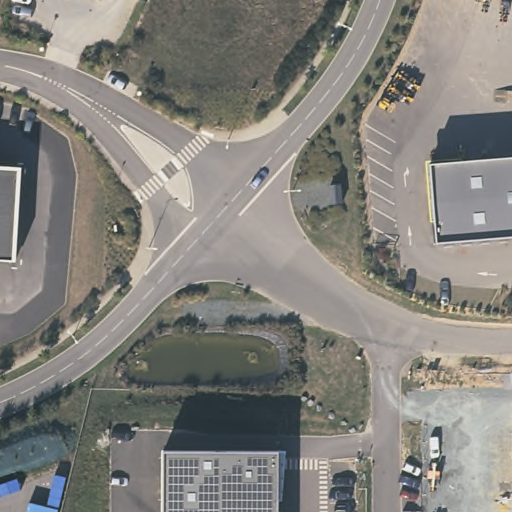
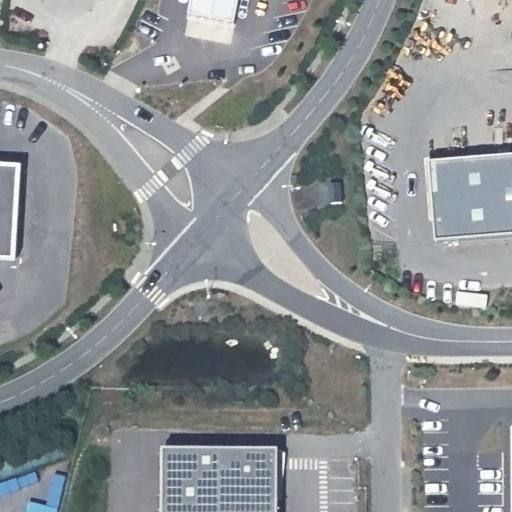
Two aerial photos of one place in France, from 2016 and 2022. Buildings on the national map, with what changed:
new [(190,15),(192,0),(237,0),(234,22),(190,15)]
unchanged [(512,158),(512,237),(435,242),(428,164),(512,158)]
unchanged [(15,262),(0,262),(0,168),(20,169),(15,262)]
unchanged [(341,184),(342,204),(331,205),(330,185),(341,184)]
unchanged [(165,452),(277,454),(277,512),(164,512),(165,452)]

